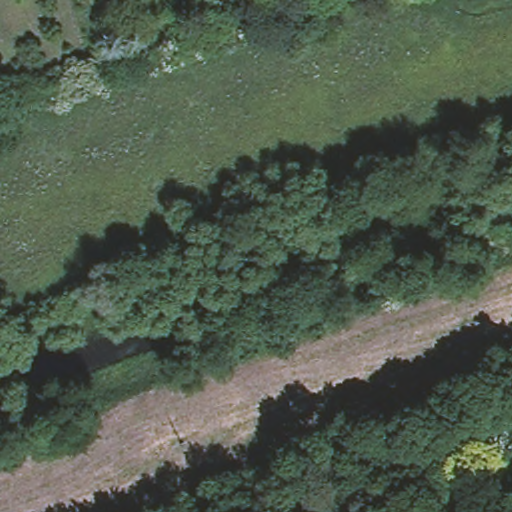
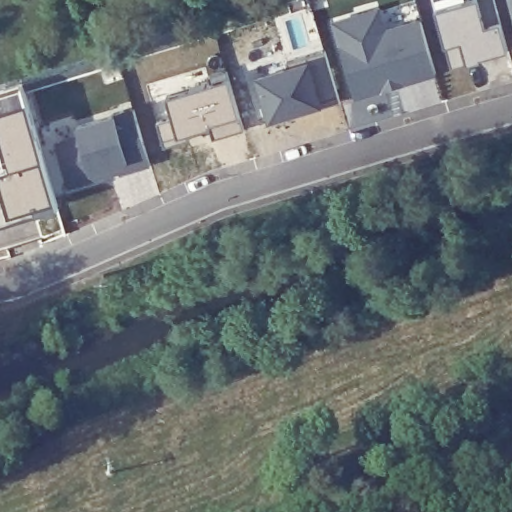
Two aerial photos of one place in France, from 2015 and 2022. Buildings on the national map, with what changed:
new [(512,0),(512,22),(507,0),(512,0)]
new [(476,5),(482,32),(499,29),(506,56),(449,70),(435,14),(476,5)]
new [(382,9),(387,31),(420,23),(435,77),(352,102),(330,24),(382,9)]
new [(308,66),(322,111),(267,127),(255,82),(308,66)]
new [(229,85),(243,134),(214,141),(210,132),(177,140),(166,101),(229,85)]
new [(25,111),(52,209),(6,220),(0,198),(0,179),(7,176),(0,151),(0,117),(25,111)]
new [(115,120),(120,146),(143,140),(152,170),(91,184),(75,131),(115,120)]

